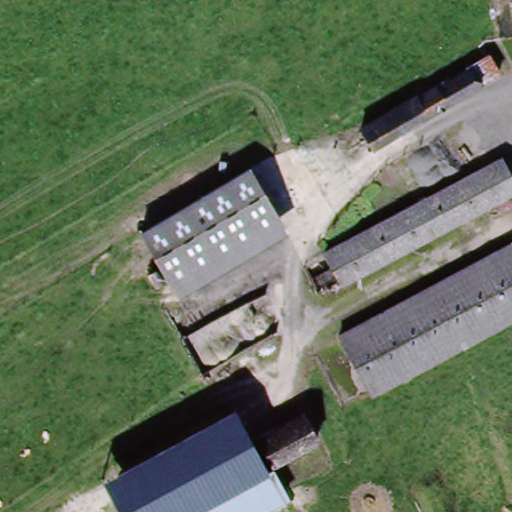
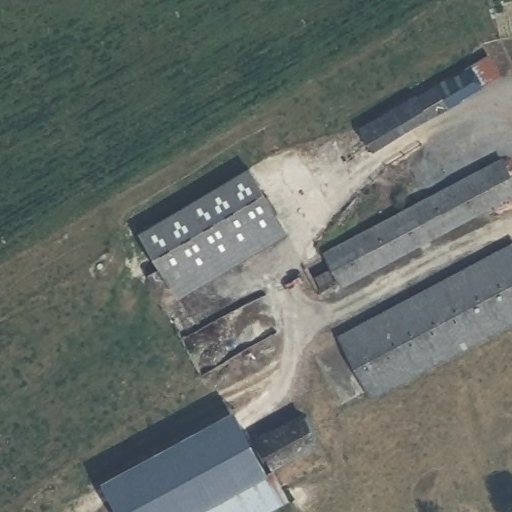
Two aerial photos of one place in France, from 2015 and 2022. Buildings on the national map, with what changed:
unchanged [(417,94),(418,94),(420,97),(421,98),(422,97),(467,71),(492,58),(501,74),(477,89),(373,148),(362,126),(417,94)]
unchanged [(512,180),(512,193),(337,284),(320,252),(500,158),(512,180)]
unchanged [(244,174),(254,191),(152,248),(144,253),(135,237),(244,174)]
unchanged [(282,235),(178,293),(152,248),(254,191),(262,186),(282,235)]
unchanged [(371,393),(340,334),(512,243),(512,318),(371,393)]
unchanged [(182,512),(116,512),(97,477),(225,408),(260,468),(182,512)]
unchanged [(300,412),(317,441),(270,466),(254,438),(300,412)]
unchanged [(268,512),(198,512),(202,509),(272,469),(288,501),(268,512)]

